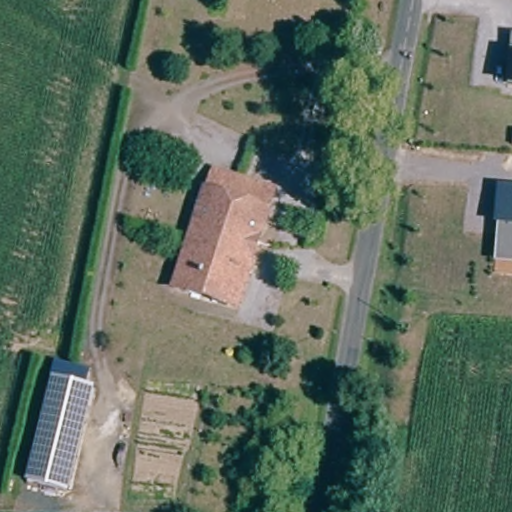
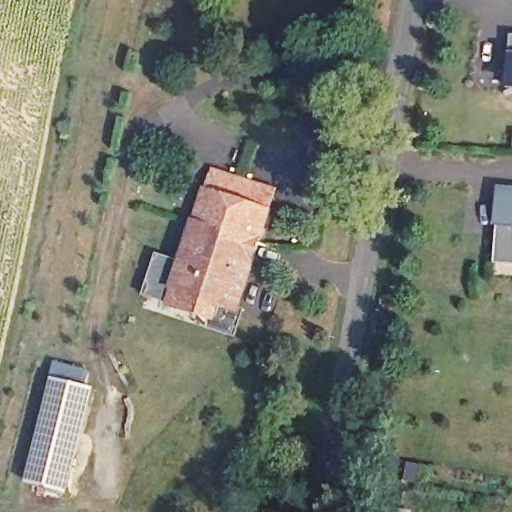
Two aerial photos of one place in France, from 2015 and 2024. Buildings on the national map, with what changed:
unchanged [(512,50),(512,89),(509,88),(511,54),(512,50)]
unchanged [(274,195),(240,308),(172,286),(213,175),(274,195)]
unchanged [(499,225),(494,225),(497,186),(512,188),(512,264),(495,263),(499,225)]
unchanged [(64,491),(33,484),(52,381),(83,386),(64,491)]

